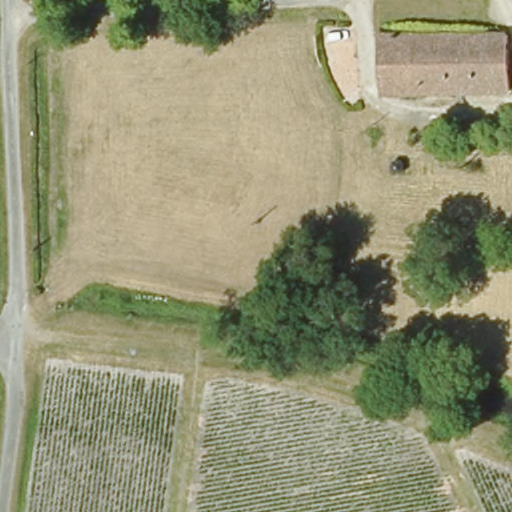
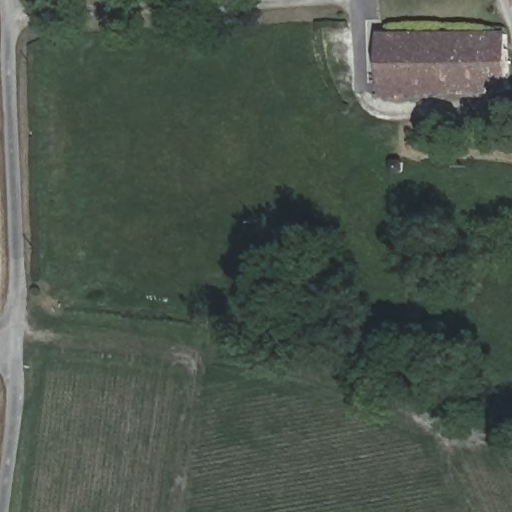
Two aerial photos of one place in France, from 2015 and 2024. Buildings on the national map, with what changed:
unchanged [(382,36),(507,35),(508,92),(383,95),(382,36)]

